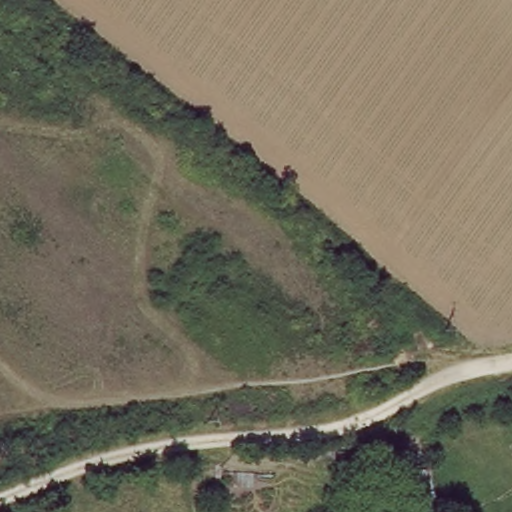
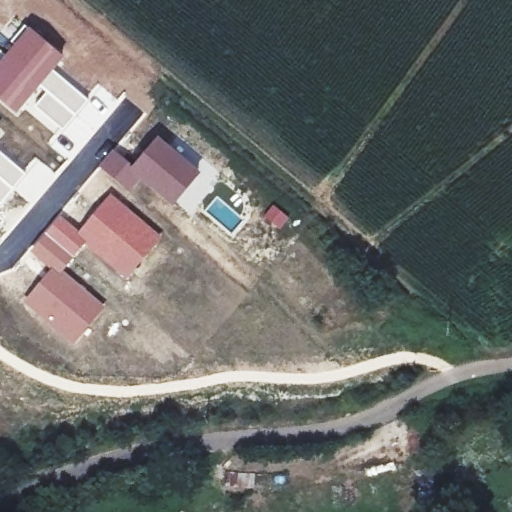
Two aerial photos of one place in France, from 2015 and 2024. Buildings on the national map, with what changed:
new [(25,25),(62,57),(53,69),(40,87),(15,115),(0,102),(0,54),(25,25)]
new [(45,92),(40,87),(53,69),(89,100),(62,130),(33,105),(45,92)]
new [(113,148),(132,165),(157,135),(202,171),(171,207),(140,180),(129,193),(97,166),(113,148)]
new [(26,172),(13,189),(0,204),(0,150),(26,172)]
new [(26,172),(37,159),(57,176),(32,205),(13,189),(26,172)]
new [(78,230),(110,193),(161,237),(125,280),(84,245),(86,243),(76,233),(78,230)]
new [(60,214),(78,230),(76,233),(86,243),(84,245),(63,270),(60,273),(53,268),(51,270),(49,268),(28,251),(60,214)]
new [(49,268),(51,270),(53,268),(60,273),(63,270),(106,307),(72,347),(21,302),(49,268)]

